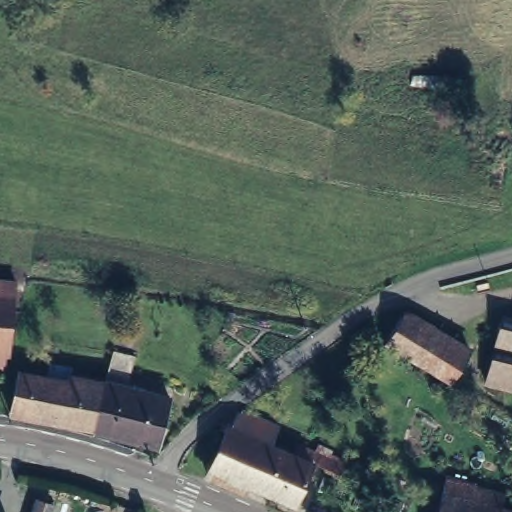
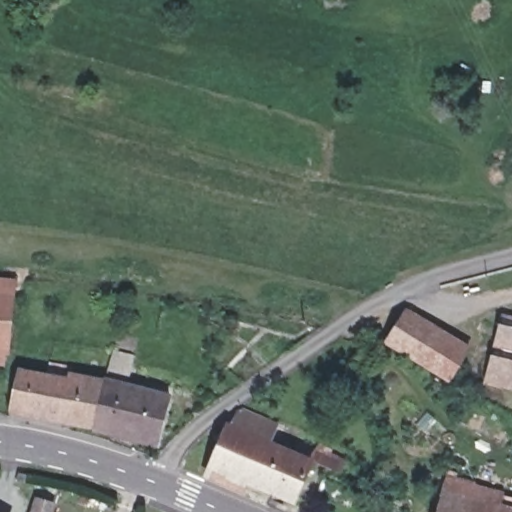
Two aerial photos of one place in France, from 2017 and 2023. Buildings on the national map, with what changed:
unchanged [(12,275),(3,344),(0,354),(0,274),(12,275)]
unchanged [(405,309),(468,348),(449,380),(384,340),(405,309)]
unchanged [(505,315),(512,317),(512,382),(489,375),(505,315)]
unchanged [(124,389),(164,400),(152,447),(90,432),(90,430),(102,383),(110,352),(130,357),(125,380),(124,389)]
unchanged [(57,423),(57,422),(9,412),(18,372),(45,377),(50,362),(69,366),(67,375),(102,383),(90,430),(57,423)]
unchanged [(197,475),(202,466),(220,423),(223,425),(230,412),(232,413),(234,409),(268,424),(262,441),(282,451),(286,441),(304,449),(332,461),(328,471),(300,459),(282,501),(236,481),(232,491),(197,475)]
unchanged [(469,486),(465,502),(503,512),(433,512),(442,480),(469,486)]

